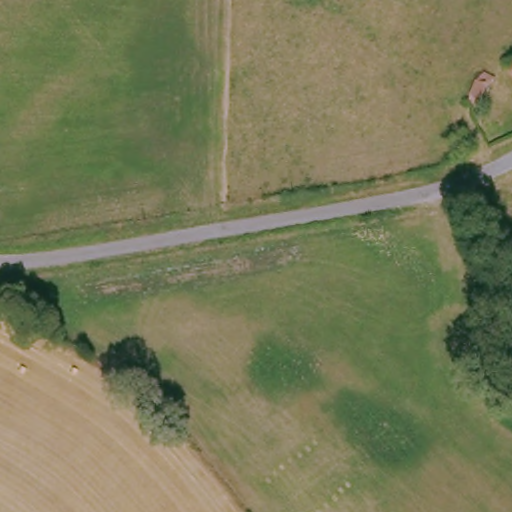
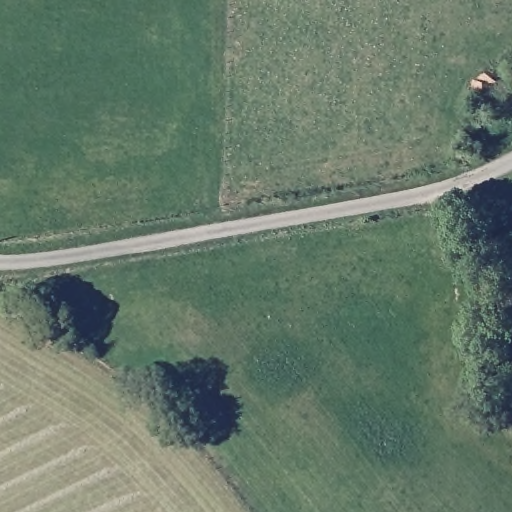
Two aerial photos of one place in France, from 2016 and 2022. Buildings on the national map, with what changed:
unchanged [(512,61),(512,74),(507,65),(512,61)]

